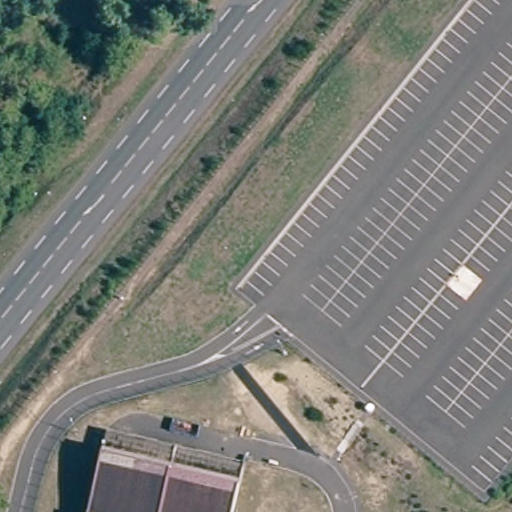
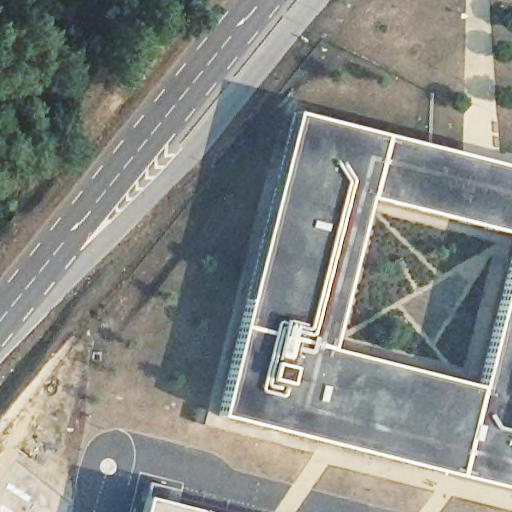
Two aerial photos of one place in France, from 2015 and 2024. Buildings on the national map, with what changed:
new [(298,113),(512,167),(512,234),(369,199),(333,349),(483,387),(512,273),(512,488),(221,414),(298,113)]
demolished [(243,463),(231,512),(90,512),(110,431),(243,463)]
new [(202,512),(143,512),(146,498),(202,512)]

